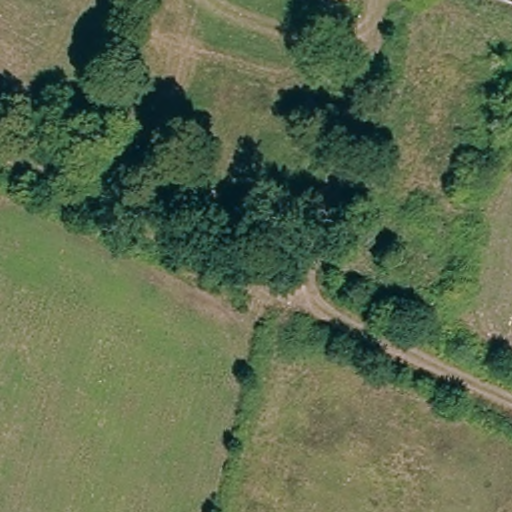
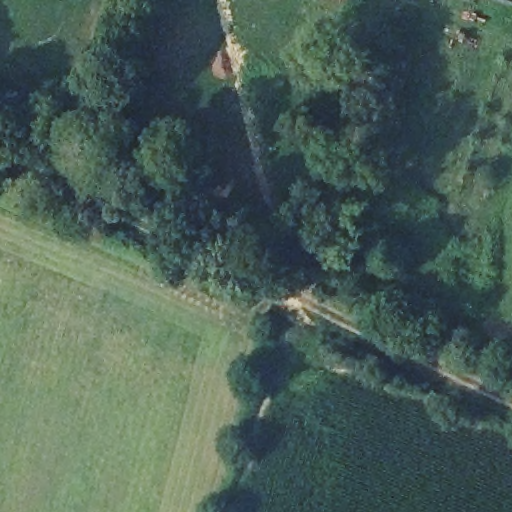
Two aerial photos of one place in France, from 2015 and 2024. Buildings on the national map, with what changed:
unchanged [(400,91),(416,96),(404,139),(389,134),(400,91)]

